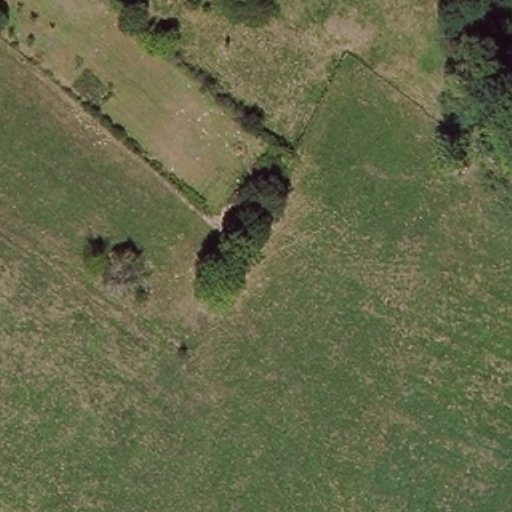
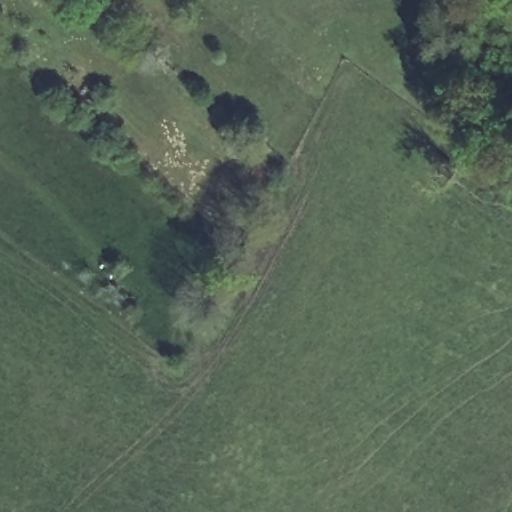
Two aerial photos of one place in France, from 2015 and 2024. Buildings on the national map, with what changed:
[]

